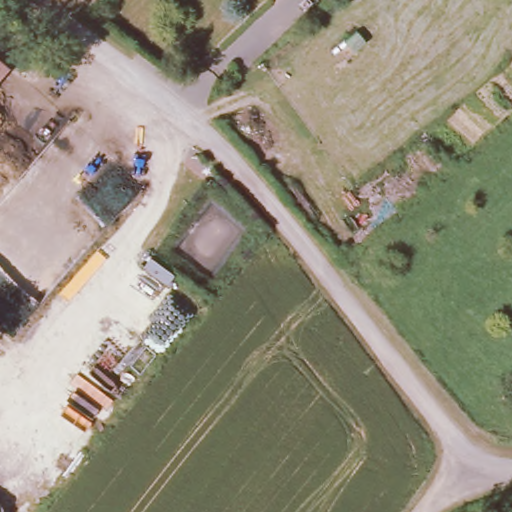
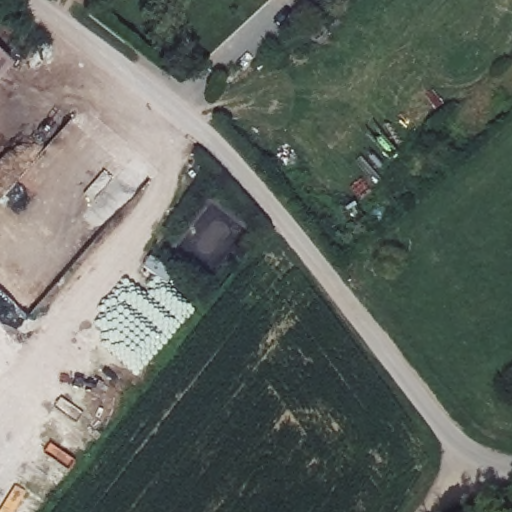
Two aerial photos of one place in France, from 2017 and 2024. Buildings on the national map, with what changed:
unchanged [(0,76),(0,62),(7,68),(0,76)]

